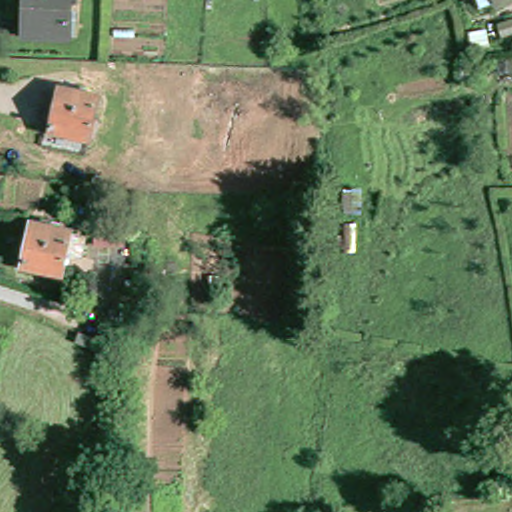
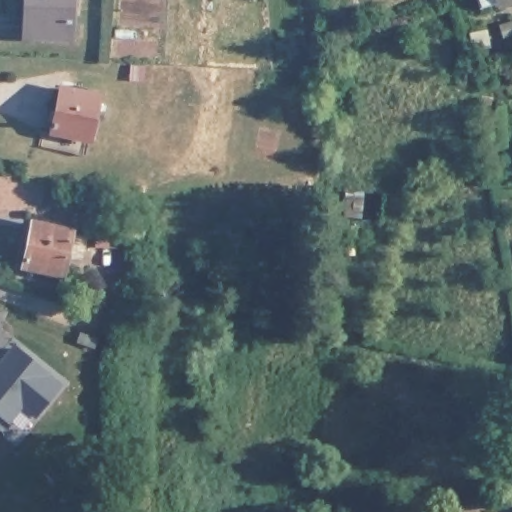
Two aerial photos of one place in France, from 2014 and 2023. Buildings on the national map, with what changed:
unchanged [(27,48),(28,0),(72,0),(70,49),(27,48)]
unchanged [(485,0),(500,0),(487,5),(485,0)]
unchanged [(94,149),(53,141),(65,79),(106,87),(94,149)]
unchanged [(68,275),(24,266),(33,224),(76,232),(68,275)]
new [(17,349),(46,374),(45,375),(58,387),(33,417),(20,406),(6,422),(0,418),(0,368),(1,368),(17,349)]

